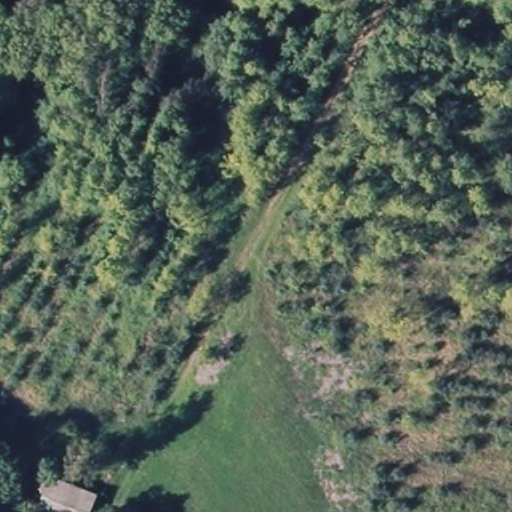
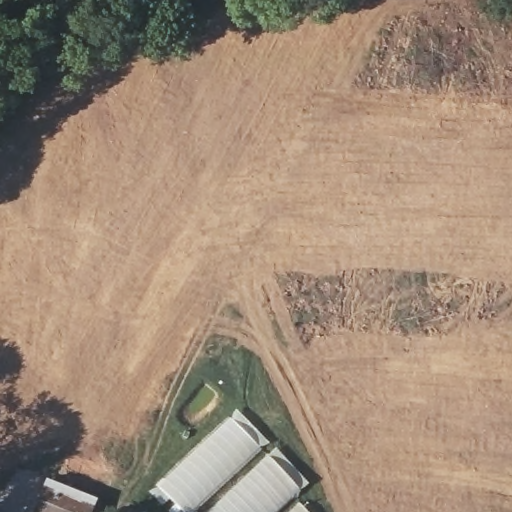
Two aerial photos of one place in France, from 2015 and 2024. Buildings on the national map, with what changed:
new [(168,474),(237,410),(268,442),(263,446),(223,484),(192,512),(189,512),(180,503),(182,501),(167,481),(170,477),(168,474)]
new [(276,447),(308,482),(276,512),(208,512),(237,483),(276,447)]
unchanged [(32,512),(49,476),(102,499),(96,512),(32,512)]
new [(309,512),(289,512),(299,502),(309,512)]

